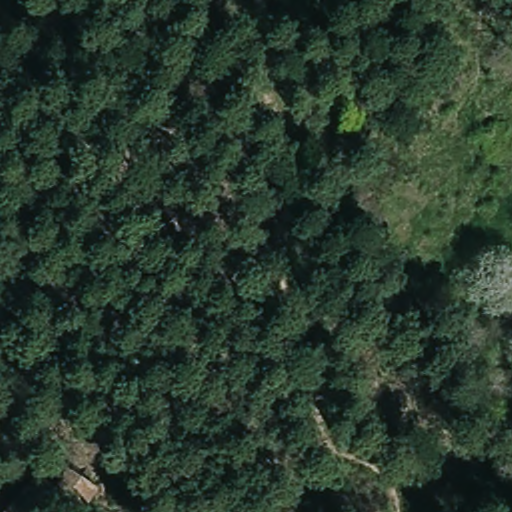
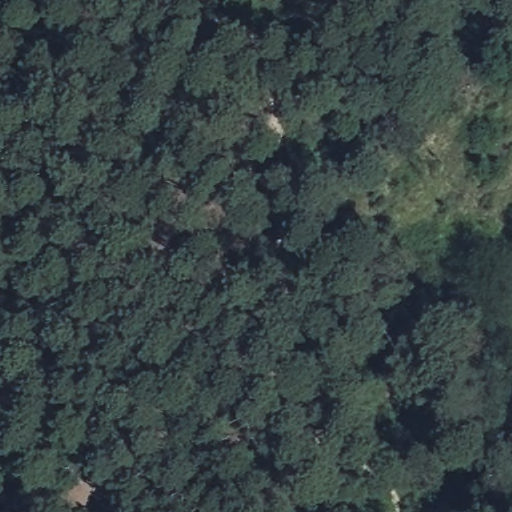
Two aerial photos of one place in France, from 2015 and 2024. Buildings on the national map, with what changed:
unchanged [(59,488),(69,476),(99,487),(87,512),(81,512),(67,503),(58,512),(11,512),(40,476),(59,488)]

